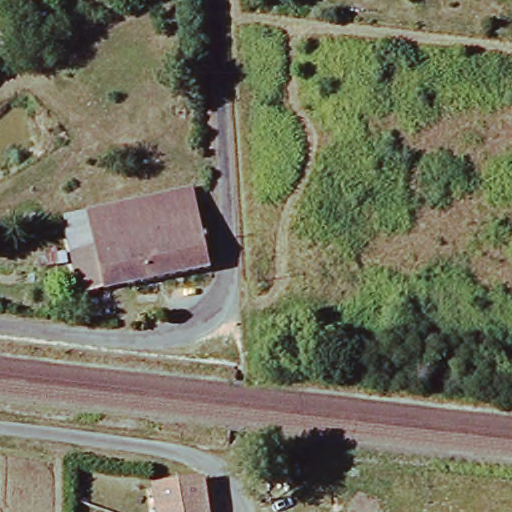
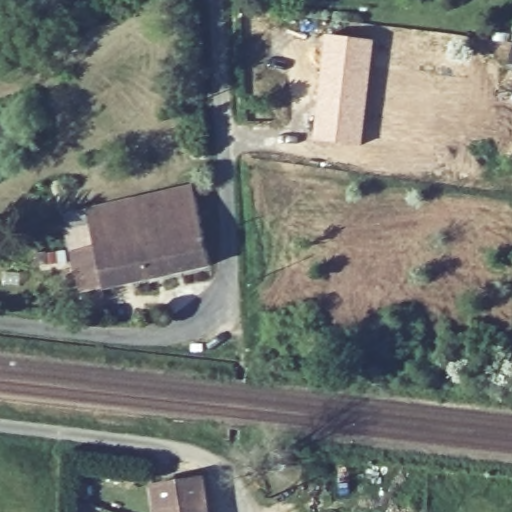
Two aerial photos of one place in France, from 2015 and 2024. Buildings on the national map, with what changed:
new [(325,33),(375,39),(362,146),(312,140),(325,33)]
unchanged [(188,188),(204,268),(74,292),(66,253),(88,249),(80,209),(188,188)]
unchanged [(151,486),(206,481),(213,480),(208,485),(210,512),(154,512),(154,510),(151,486)]

